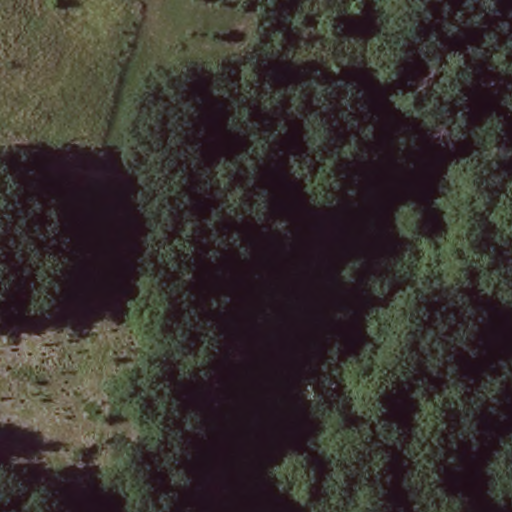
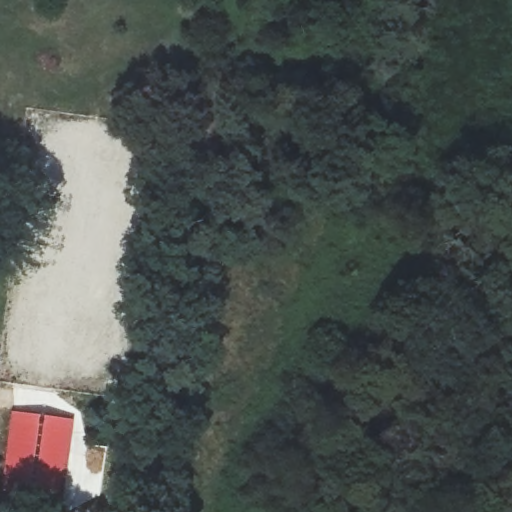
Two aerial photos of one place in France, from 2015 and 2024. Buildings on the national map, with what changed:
new [(61,505),(5,496),(13,412),(75,421),(61,505)]

